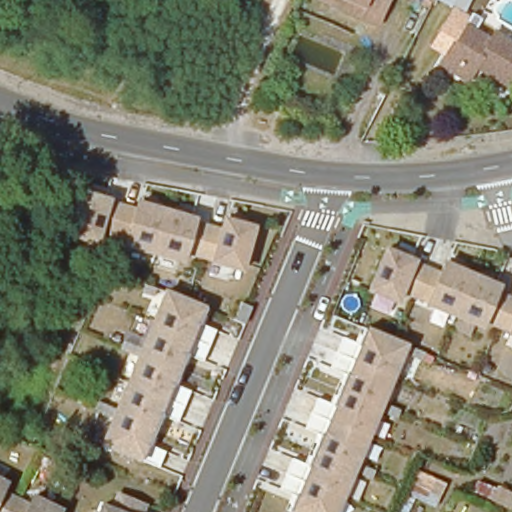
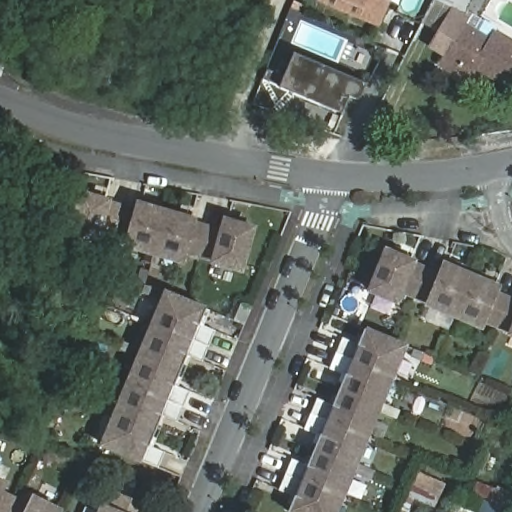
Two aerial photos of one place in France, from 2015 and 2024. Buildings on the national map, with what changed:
unchanged [(363,22),(367,13),(335,0),(396,0),(384,30),(363,22)]
unchanged [(441,0),(470,0),(464,11),(441,0)]
unchanged [(459,30),(486,44),(490,38),(512,52),(512,78),(504,92),(478,76),(480,73),(474,69),(472,73),(468,79),(440,62),(459,30)]
new [(359,101),(349,98),(342,113),(281,88),(282,85),(266,79),(270,68),(285,73),(294,53),(368,84),(359,101)]
unchanged [(214,260),(185,254),(183,260),(121,247),(124,239),(102,234),(100,244),(66,235),(76,189),(111,199),(110,204),(133,209),(135,202),(197,218),(195,224),(220,229),(223,219),(258,225),(245,270),(213,264),(214,260)]
unchanged [(481,329),(424,307),(426,303),(403,294),(398,304),(366,291),(383,246),(418,259),(416,264),(440,271),(444,260),(502,285),(499,292),(512,298),(512,335),(507,334),(509,330),(485,321),(481,329)]
unchanged [(204,359),(187,354),(180,371),(136,352),(164,289),(206,309),(200,324),(217,332),(204,359)]
unchanged [(368,435),(337,512),(289,512),(295,498),(279,492),(292,461),(308,467),(320,437),(304,431),(311,415),(317,399),(333,406),(345,376),(329,369),(342,339),(357,346),(364,330),(404,347),(368,435)]
unchanged [(175,384),(192,391),(178,422),(161,417),(150,444),(166,451),(160,468),(142,464),(99,447),(136,352),(180,371),(175,384)]
unchanged [(0,494),(0,484),(4,486),(0,494)]
unchanged [(496,489),(512,496),(512,511),(512,512),(490,502),(496,489)]
unchanged [(33,501),(57,512),(0,512),(0,494),(29,509),(33,501)]
unchanged [(121,498),(148,508),(146,512),(116,512),(121,498)]
unchanged [(106,509),(114,512),(105,512),(106,509)]

